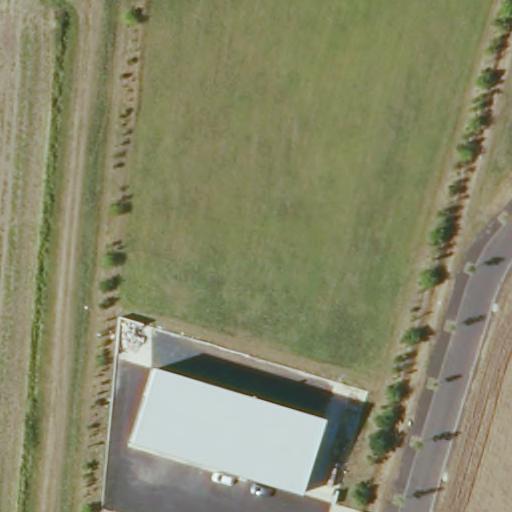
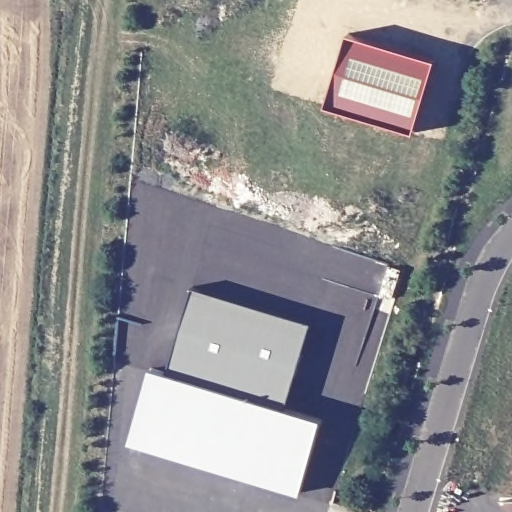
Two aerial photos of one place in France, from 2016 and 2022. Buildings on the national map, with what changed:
new [(352,33),(437,59),(415,129),(330,103),(352,33)]
new [(168,376),(195,287),(311,322),(284,410),(168,376)]
unchanged [(155,372),(325,423),(302,498),(133,444),(155,372)]

